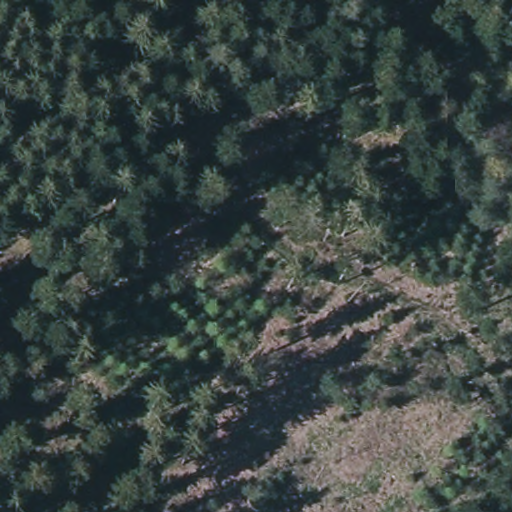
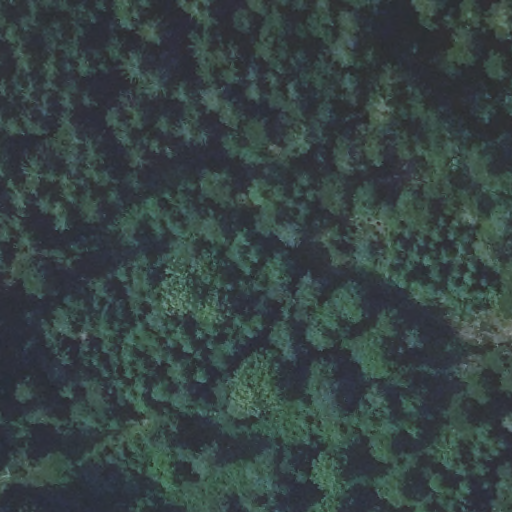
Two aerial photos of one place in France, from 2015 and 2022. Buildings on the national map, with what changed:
[]

